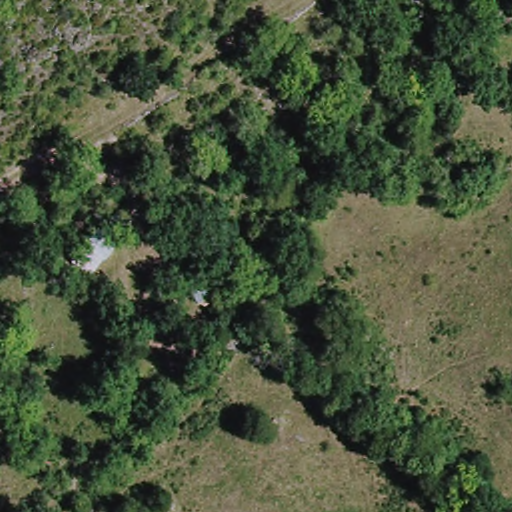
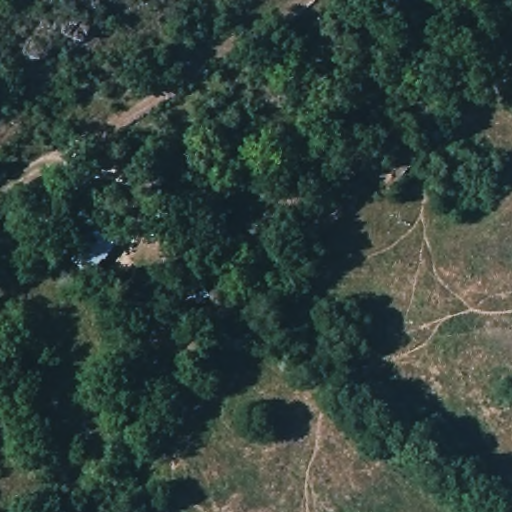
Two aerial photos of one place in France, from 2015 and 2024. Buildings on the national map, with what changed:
unchanged [(70,259),(98,224),(120,240),(93,275),(70,259)]

